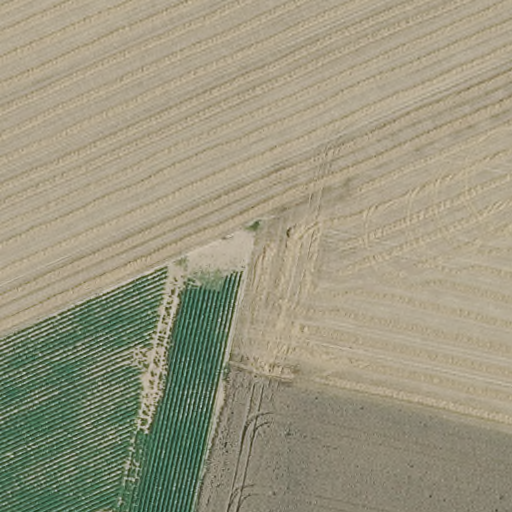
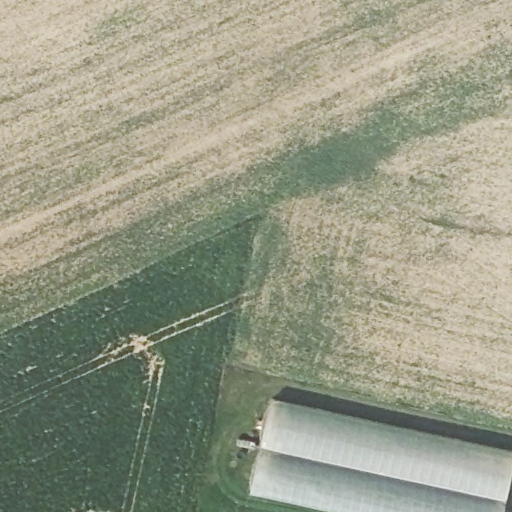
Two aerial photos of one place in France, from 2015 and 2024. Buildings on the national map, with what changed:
new [(271,397),(512,450),(512,472),(503,512),(339,512),(249,492),(271,397)]

